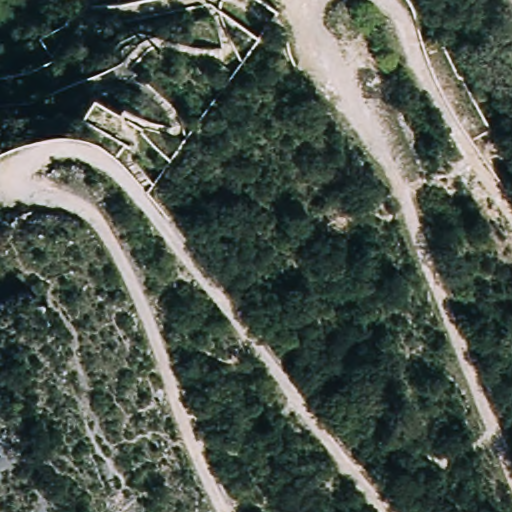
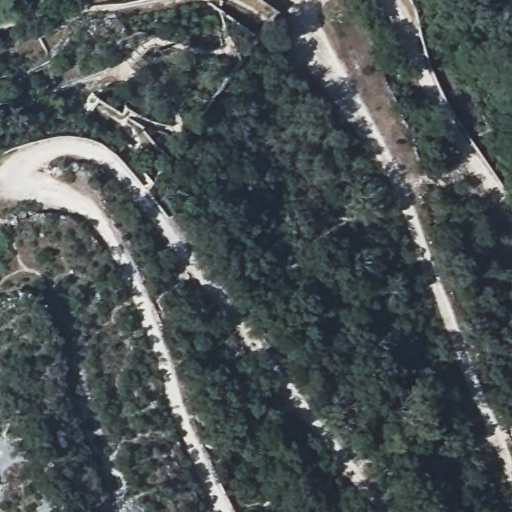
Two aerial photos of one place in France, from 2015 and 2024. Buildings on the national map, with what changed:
unchanged [(209,0),(210,2),(121,13),(117,0),(209,0)]
unchanged [(494,162),(445,51),(469,44),(512,137),(512,189),(512,190),(494,162)]

